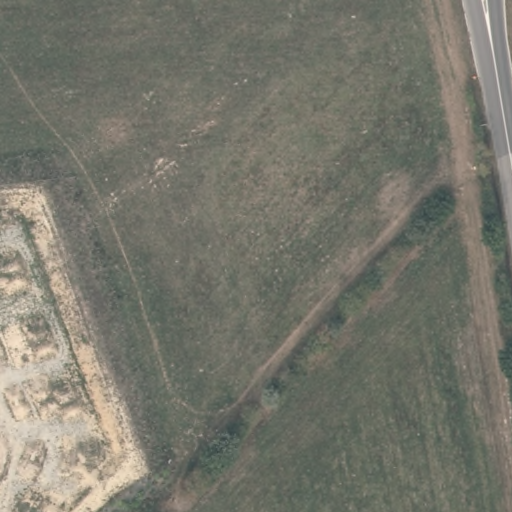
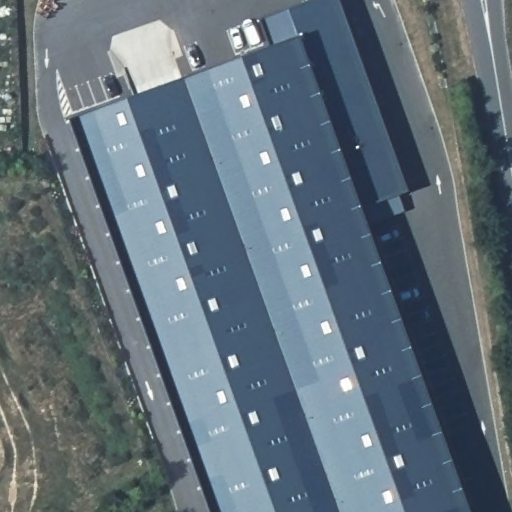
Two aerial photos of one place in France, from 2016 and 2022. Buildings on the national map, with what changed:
new [(258,19),(312,0),(339,0),(408,190),(398,193),(406,211),(370,223),(473,512),(209,512),(68,119),(269,47),(258,19)]

